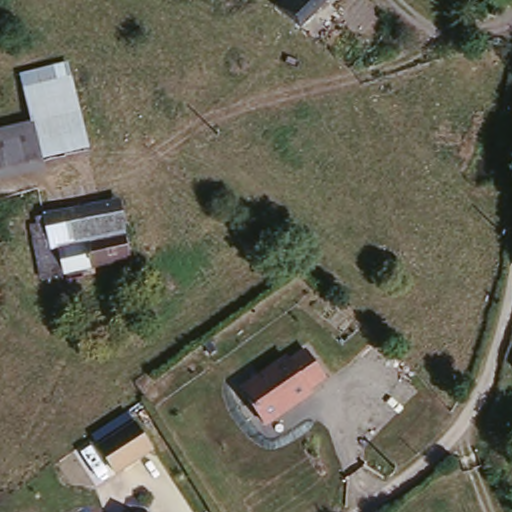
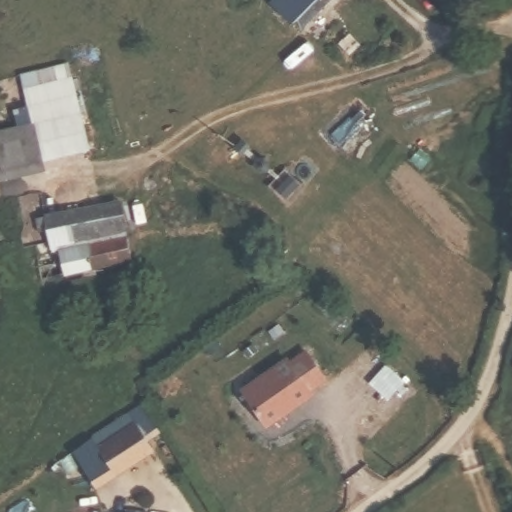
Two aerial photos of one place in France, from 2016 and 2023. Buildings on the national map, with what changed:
unchanged [(327,0),(301,27),(277,2),(279,0),(327,0)]
unchanged [(133,262),(38,282),(26,218),(119,197),(133,262)]
unchanged [(300,352),(324,381),(260,421),(241,392),(300,352)]
unchanged [(511,368),(512,364),(512,369),(511,368)]
unchanged [(98,447),(91,436),(128,412),(135,423),(154,452),(116,477),(98,447)]

